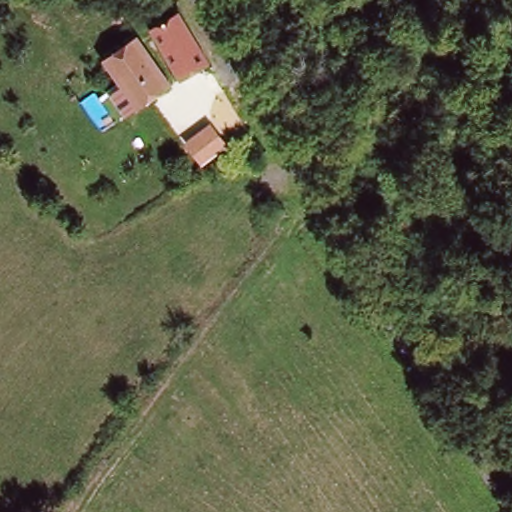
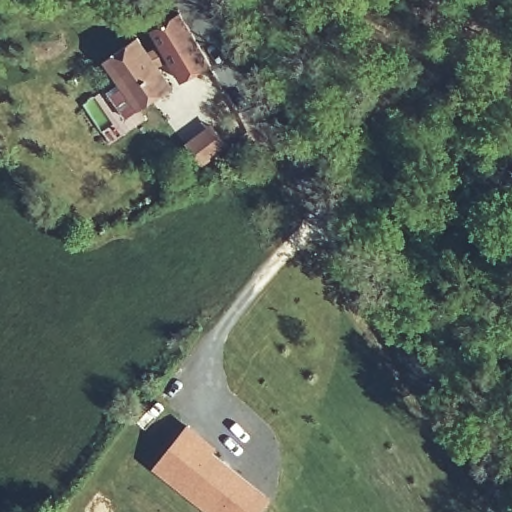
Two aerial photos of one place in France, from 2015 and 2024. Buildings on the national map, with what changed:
unchanged [(184,84),(150,30),(181,11),(211,66),(184,84)]
unchanged [(139,111),(106,62),(139,40),(173,89),(139,111)]
unchanged [(226,145),(201,165),(183,142),(209,122),(226,145)]
new [(214,452),(272,497),(260,512),(207,512),(152,468),(188,423),(219,447),(214,452)]

